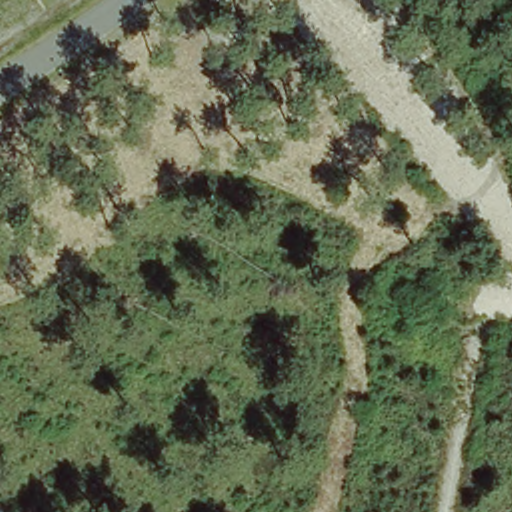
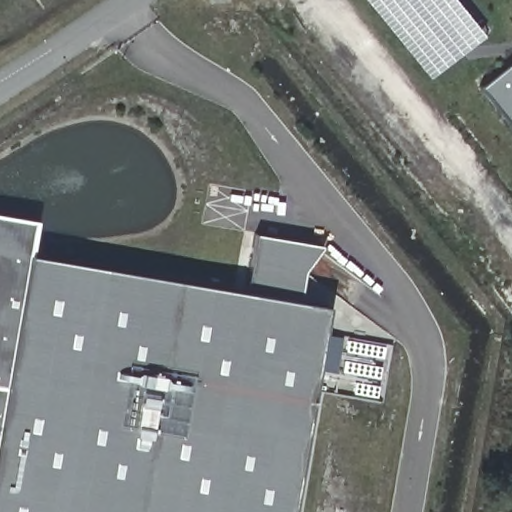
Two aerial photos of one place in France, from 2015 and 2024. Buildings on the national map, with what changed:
new [(430,79),(366,0),(454,0),(483,35),(430,79)]
new [(512,69),(512,121),(485,89),(512,69)]
new [(35,216),(29,249),(253,287),(263,229),(331,241),(313,266),(309,281),(309,297),(330,300),(294,512),(0,512),(0,210),(35,216)]

